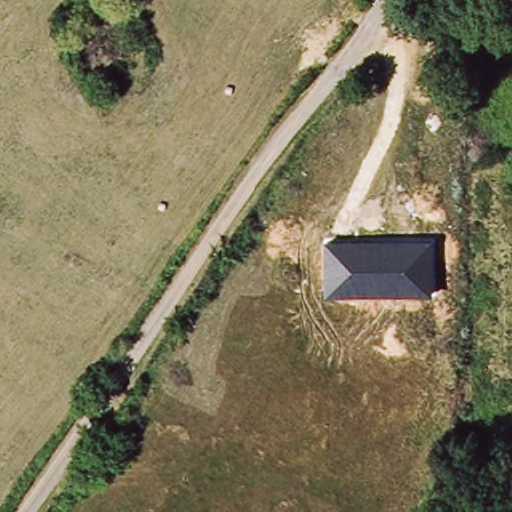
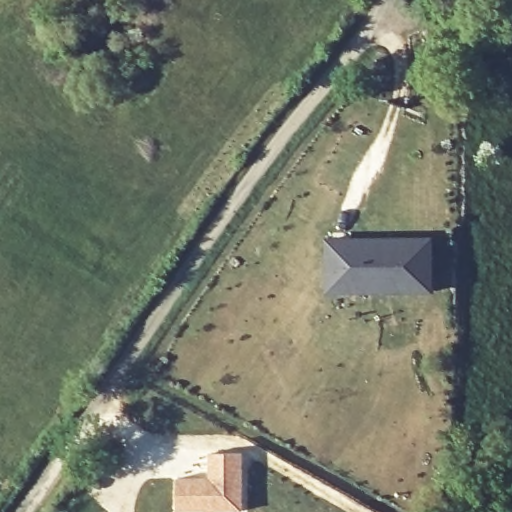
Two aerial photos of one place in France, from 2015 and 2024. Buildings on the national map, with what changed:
unchanged [(433,237),(434,292),(326,294),(325,237),(433,237)]
new [(210,480),(209,455),(242,455),(242,511),(177,512),(177,481),(210,480)]

